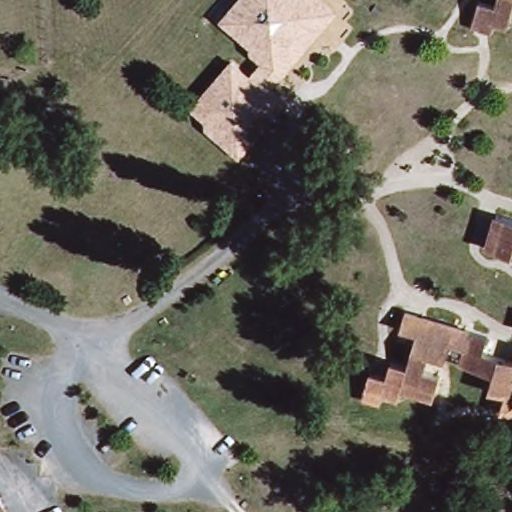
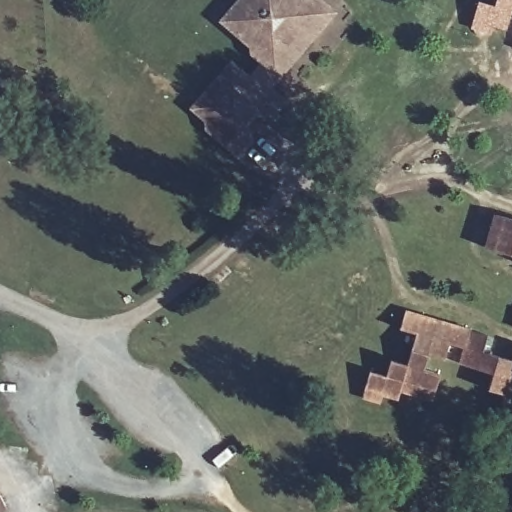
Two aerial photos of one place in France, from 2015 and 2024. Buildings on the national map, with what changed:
unchanged [(209,120),(214,115),(198,101),(235,59),(252,74),(265,60),(250,48),(253,41),(221,14),(234,0),(317,0),(331,13),(275,82),(288,95),(244,150),(209,120)]
unchanged [(508,20),(478,11),(481,0),(512,0),(512,7),(508,20)]
unchanged [(494,207),(512,212),(512,248),(484,240),(494,207)]
unchanged [(445,352),(442,365),(425,360),(420,380),(434,383),(430,398),(399,390),(394,406),(364,397),(369,380),(383,385),(388,368),(402,372),(411,342),(396,337),(402,319),(482,345),(478,356),(508,366),(512,355),(512,414),(510,420),(495,416),(499,402),(484,398),(489,380),(457,370),(460,356),(445,352)]

